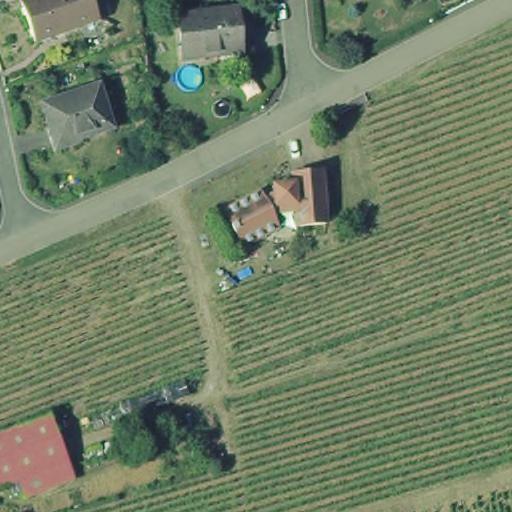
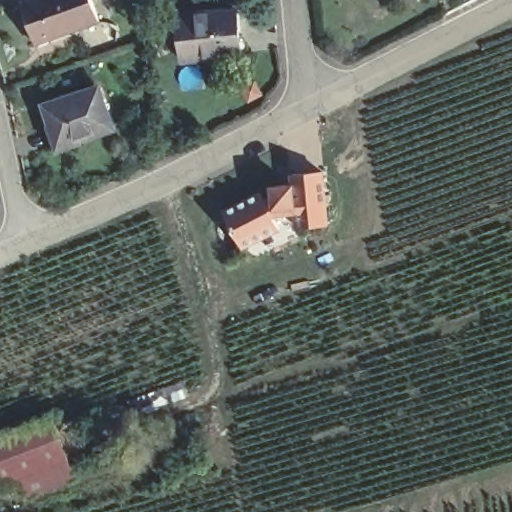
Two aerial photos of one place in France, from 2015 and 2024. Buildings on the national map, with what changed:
unchanged [(90,24),(27,47),(11,7),(32,0),(81,0),(90,24)]
unchanged [(237,59),(179,65),(174,21),(232,15),(237,59)]
unchanged [(102,132),(47,150),(34,110),(89,92),(102,132)]
unchanged [(330,222),(299,226),(297,212),(277,212),(272,215),(278,227),(242,245),(223,210),(260,192),(264,200),(274,196),(273,187),(292,186),(292,174),(324,170),(330,222)]
unchanged [(55,412),(72,460),(25,478),(1,487),(0,485),(0,433),(55,412)]
unchanged [(72,460),(80,480),(32,498),(25,478),(72,460)]

